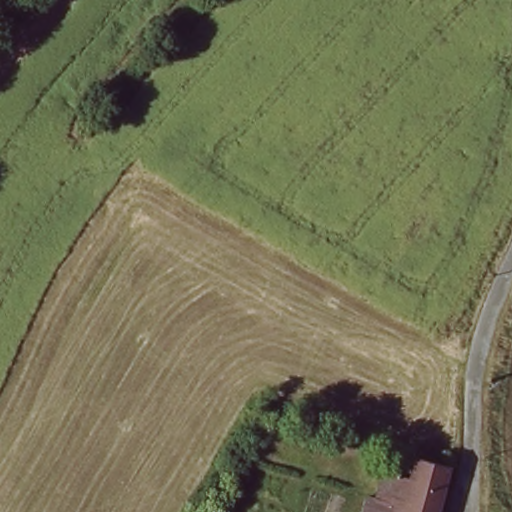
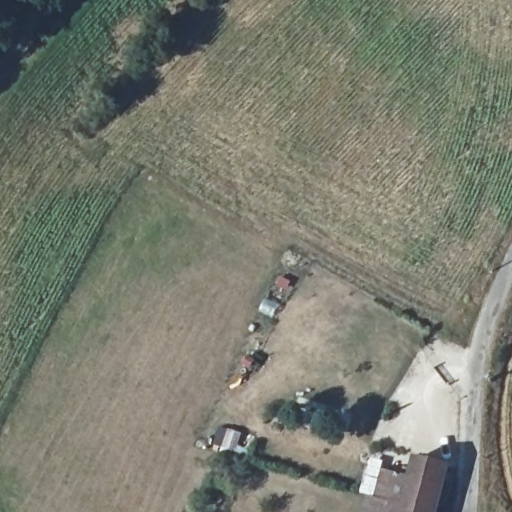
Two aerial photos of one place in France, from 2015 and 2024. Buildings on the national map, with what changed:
unchanged [(364,512),(366,501),(376,503),(376,497),(382,475),(404,480),(407,468),(414,470),(417,457),(451,467),(436,512),(364,512)]

